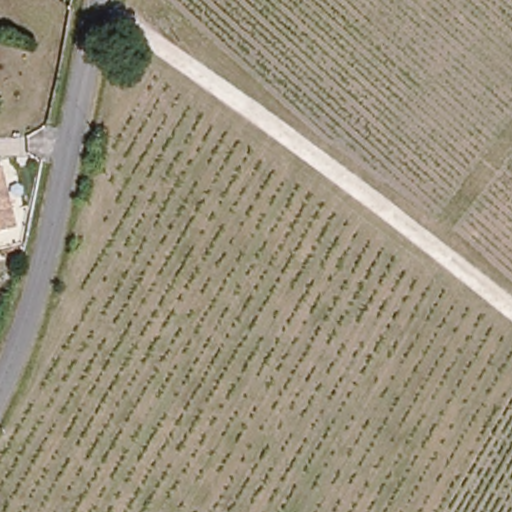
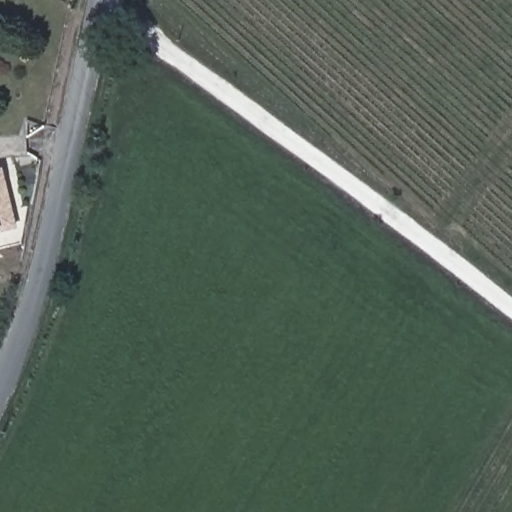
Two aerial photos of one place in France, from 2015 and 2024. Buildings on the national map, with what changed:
unchanged [(15,226),(0,229),(0,168),(2,168),(15,226)]

